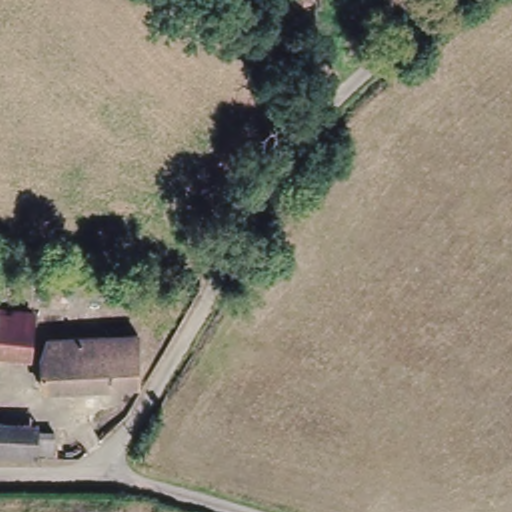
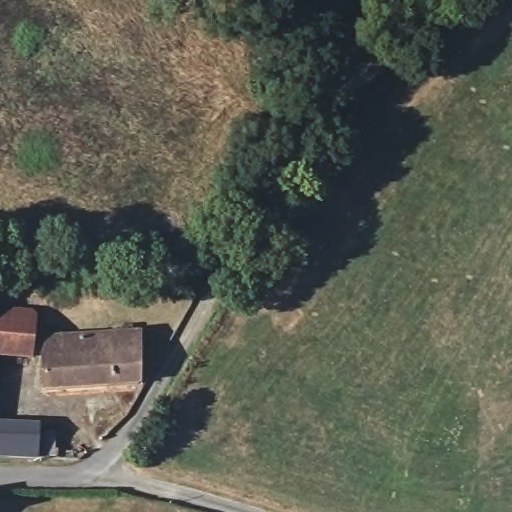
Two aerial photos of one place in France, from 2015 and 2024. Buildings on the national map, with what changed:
unchanged [(289,0),(309,0),(293,7),(291,5),(289,0)]
unchanged [(115,289),(116,302),(74,302),(73,289),(115,289)]
unchanged [(25,311),(21,354),(0,353),(0,309),(25,311)]
unchanged [(111,339),(112,329),(131,329),(132,337),(137,337),(140,388),(46,393),(43,357),(47,342),(111,339)]
unchanged [(0,452),(0,420),(31,421),(31,428),(47,428),(47,452),(30,452),(0,452)]

